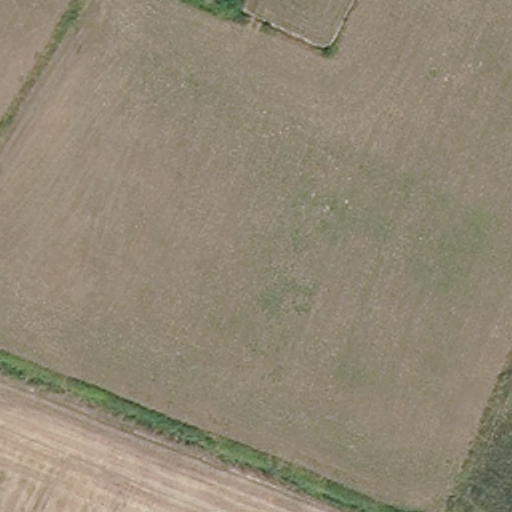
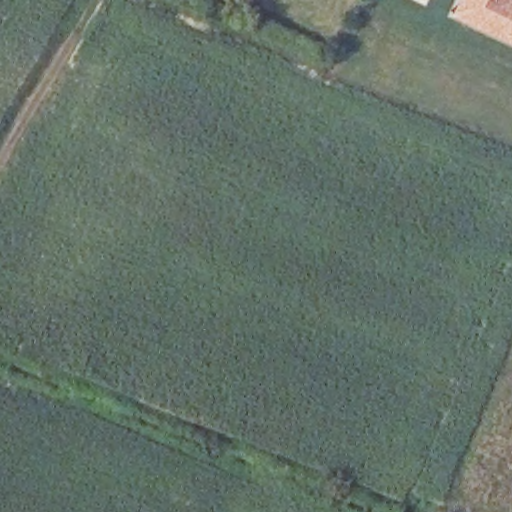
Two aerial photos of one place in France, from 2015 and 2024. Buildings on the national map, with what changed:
new [(457,0),(512,0),(512,45),(450,15),(457,0)]

